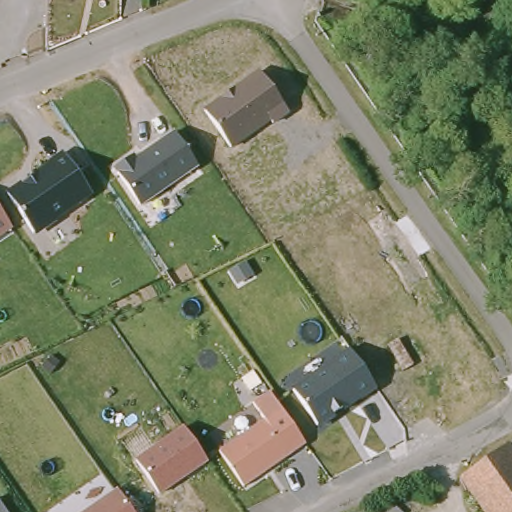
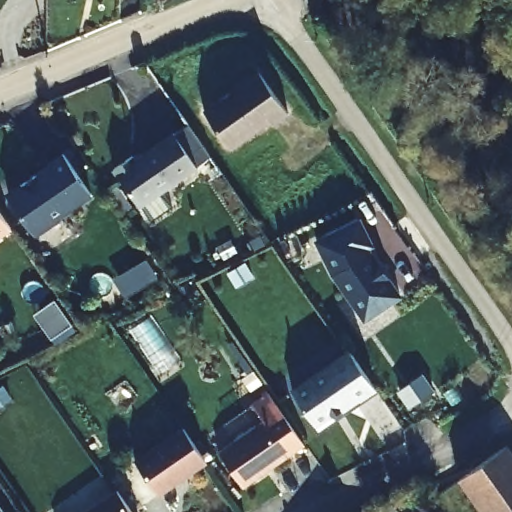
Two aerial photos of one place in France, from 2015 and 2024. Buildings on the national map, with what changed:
unchanged [(256,71),(287,115),(270,126),(268,123),(229,148),(202,110),(256,71)]
unchanged [(136,158),(173,133),(198,168),(140,207),(113,168),(133,155),(136,158)]
unchanged [(92,195),(35,236),(6,192),(20,181),(21,183),(61,152),(92,195)]
unchanged [(0,238),(0,210),(13,229),(0,238)]
new [(360,217),(373,240),(369,242),(371,247),(402,286),(370,310),(338,269),(321,239),(360,217)]
new [(71,319),(52,333),(35,309),(54,295),(71,319)]
unchanged [(351,352),(375,388),(318,425),(294,391),(351,352)]
new [(12,394),(0,403),(0,386),(4,383),(12,394)]
unchanged [(289,456),(243,487),(218,451),(263,420),(289,456)]
unchanged [(208,462),(159,495),(134,459),(183,426),(208,462)]
unchanged [(496,444),(512,464),(512,512),(478,512),(452,480),(496,444)]
unchanged [(84,512),(116,489),(132,512),(84,512)]
unchanged [(0,512),(0,505),(5,512),(0,512)]
unchanged [(381,512),(370,512),(374,506),(381,512)]

